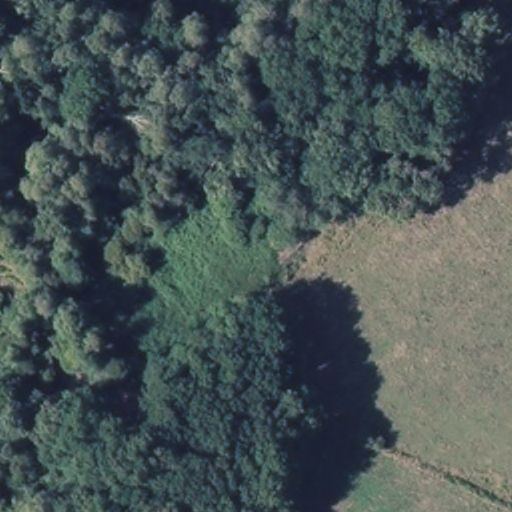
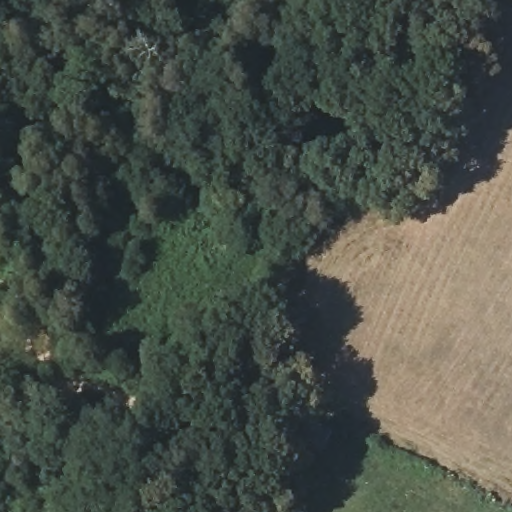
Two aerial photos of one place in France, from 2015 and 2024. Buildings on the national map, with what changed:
unchanged [(313,453),(292,490),(267,479),(286,441),(313,453)]

